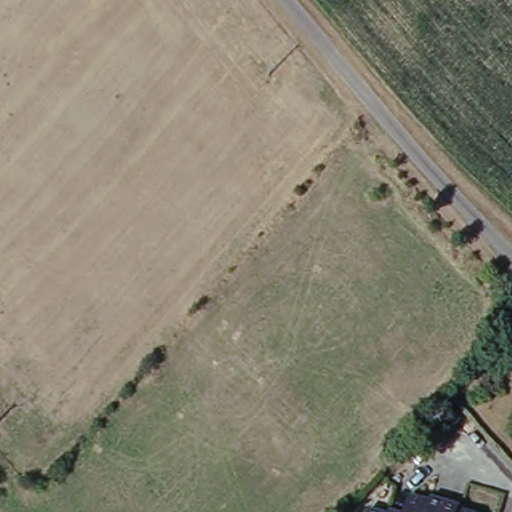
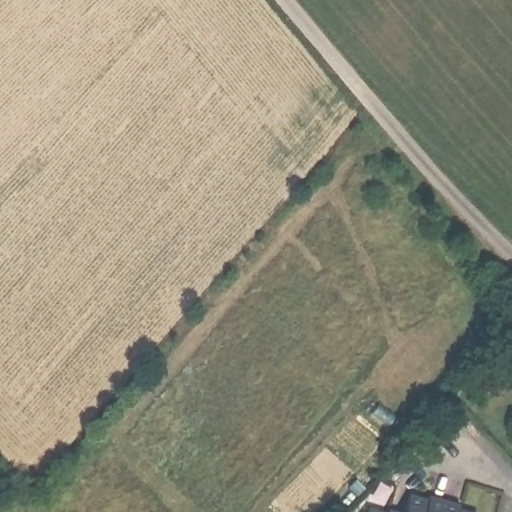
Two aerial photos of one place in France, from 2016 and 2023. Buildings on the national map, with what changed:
unchanged [(410,497),(429,503),(431,497),(458,505),(457,512),(405,512),(410,497)]
unchanged [(367,510),(373,512),(366,512),(367,510)]

